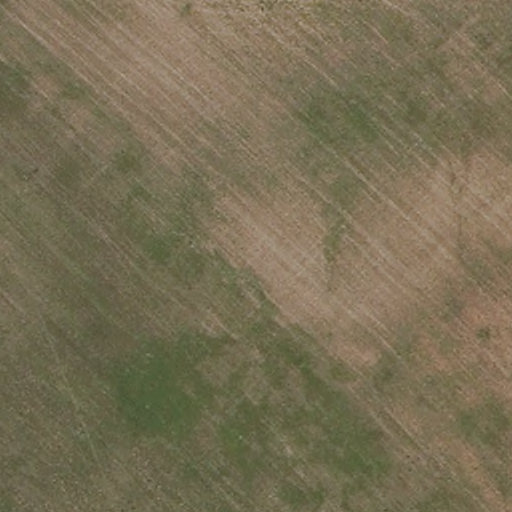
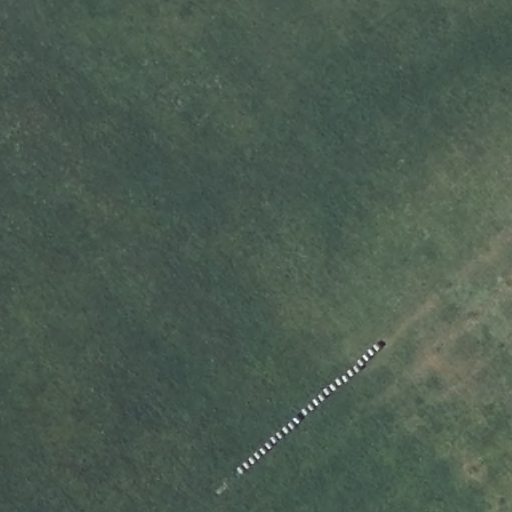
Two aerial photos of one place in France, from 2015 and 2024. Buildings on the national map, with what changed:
[]

